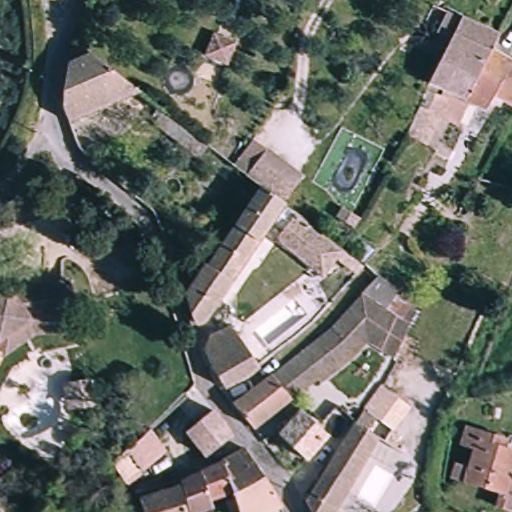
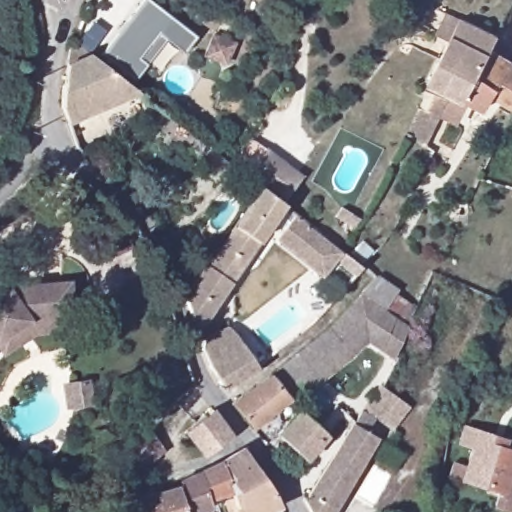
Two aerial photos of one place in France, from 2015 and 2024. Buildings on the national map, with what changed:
new [(134,80),(100,54),(143,0),(150,0),(196,37),(183,53),(166,40),(147,64),(134,80)]
unchanged [(512,58),(512,100),(493,90),(484,105),(464,95),(427,78),(453,27),(460,12),(498,30),(490,45),(509,56),(512,58)]
unchanged [(236,37),(231,56),(209,49),(215,30),(236,37)]
unchanged [(66,121),(62,109),(63,92),(70,47),(78,44),(138,91),(68,121),(66,121)]
unchanged [(411,119),(426,85),(447,95),(425,140),(412,132),(406,128),(411,119)]
unchanged [(208,146),(197,160),(148,120),(158,107),(208,146)]
unchanged [(268,147),(306,176),(286,202),(264,185),(261,183),(248,172),(268,147)]
unchanged [(110,166),(119,172),(113,180),(105,173),(110,166)]
unchanged [(208,263),(211,265),(264,185),(286,202),(271,222),(233,280),(208,318),(206,321),(203,322),(201,322),(198,322),(195,320),(192,312),(187,293),(208,263)]
unchanged [(335,272),(271,222),(286,202),(316,224),(344,247),(351,252),(335,272)]
unchanged [(376,248),(365,261),(354,252),(365,239),(376,248)]
unchanged [(330,328),(361,292),(376,276),(398,290),(385,309),(408,326),(393,358),(366,341),(352,355),(319,382),(316,377),(289,398),(271,375),(300,352),(330,328)]
unchanged [(68,277),(71,310),(28,313),(0,333),(0,291),(13,283),(68,277)]
unchanged [(71,310),(73,324),(34,327),(3,348),(0,343),(0,333),(28,313),(71,310)]
unchanged [(210,335),(228,326),(257,367),(246,376),(223,387),(216,376),(208,363),(203,348),(210,335)]
unchanged [(271,375),(289,398),(251,427),(231,403),(271,375)]
unchanged [(354,422),(361,411),(378,389),(407,406),(394,430),(375,419),(366,431),(376,437),(332,512),(310,512),(305,502),(339,446),(353,423),(354,422)]
unchanged [(213,409),(231,435),(203,457),(185,432),(213,409)]
unchanged [(299,410),(326,435),(305,460),(277,434),(299,410)]
unchanged [(465,426),(506,438),(503,448),(512,451),(512,464),(508,478),(512,480),(512,511),(494,506),(498,492),(449,477),(454,462),(467,466),(472,449),(459,445),(465,426)]
unchanged [(148,428),(165,451),(141,470),(126,483),(113,462),(112,461),(125,448),(148,428)]
unchanged [(238,442),(257,472),(266,483),(275,500),(249,512),(234,512),(233,510),(226,512),(221,496),(228,493),(226,487),(203,494),(206,502),(183,512),(174,476),(194,467),(216,457),(238,442)]
unchanged [(181,512),(138,512),(133,493),(173,481),(181,512)]

